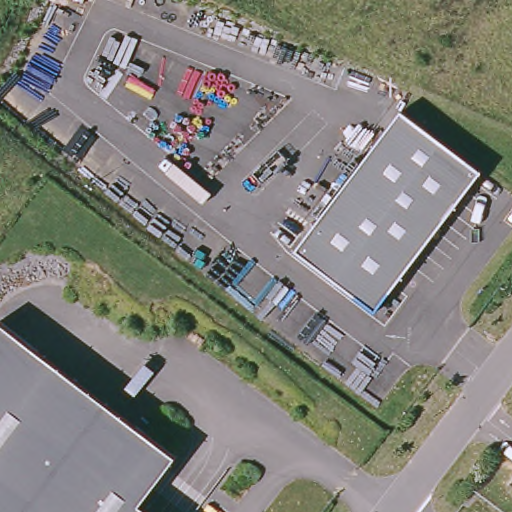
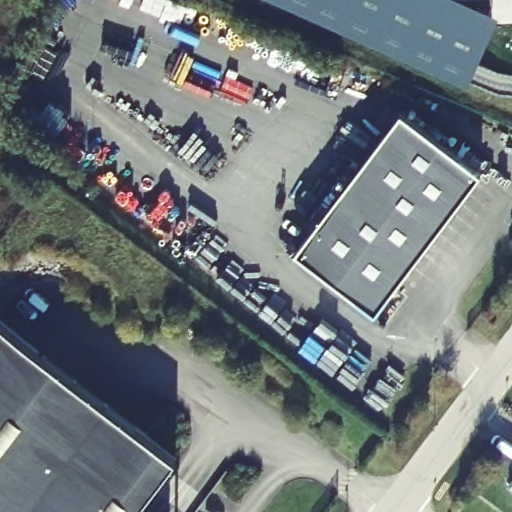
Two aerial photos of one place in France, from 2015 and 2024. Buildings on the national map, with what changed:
new [(500,10),(469,81),(284,0),(477,0),(500,10)]
unchanged [(482,172),(377,311),(297,249),(399,111),(482,172)]
unchanged [(139,505),(149,512),(0,512),(0,323),(176,457),(139,505)]
unchanged [(512,487),(509,486),(512,482),(512,487)]

